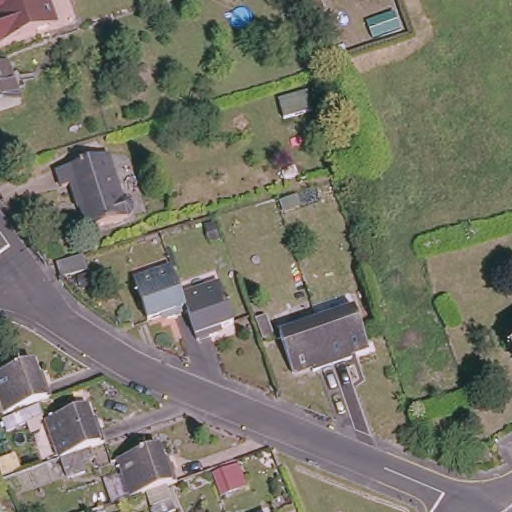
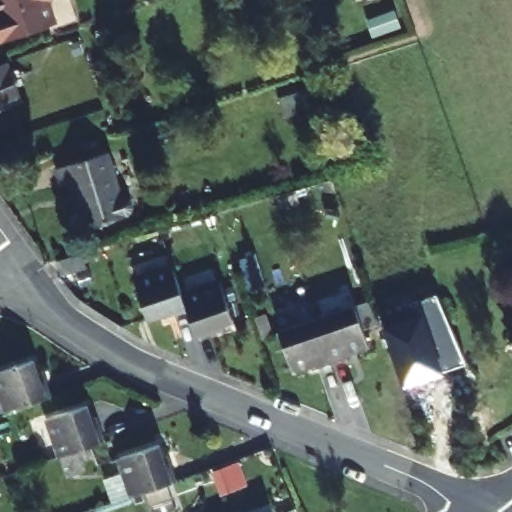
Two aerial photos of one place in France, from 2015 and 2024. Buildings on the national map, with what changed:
unchanged [(6,39),(0,24),(0,15),(2,14),(0,9),(0,0),(55,0),(62,18),(6,39)]
unchanged [(0,58),(13,96),(0,100),(0,58)]
unchanged [(312,94),(317,109),(288,118),(282,104),(312,94)]
unchanged [(90,229),(85,208),(80,209),(74,184),(65,186),(61,169),(110,154),(131,216),(90,229)]
unchanged [(74,258),(87,254),(92,268),(78,272),(66,275),(62,262),(74,258)]
unchanged [(167,309),(147,314),(135,275),(172,264),(180,292),(186,307),(168,313),(167,309)]
unchanged [(186,307),(180,292),(220,279),(232,317),(213,323),(215,329),(195,335),(186,307)]
new [(382,325),(426,311),(422,299),(437,293),(465,362),(442,369),(444,374),(404,387),(382,325)]
unchanged [(355,303),(367,340),(349,347),(350,352),(330,358),(317,316),(355,303)]
unchanged [(330,358),(311,364),(310,359),(291,366),(279,329),(317,316),(330,358)]
unchanged [(0,379),(0,365),(33,354),(40,372),(45,371),(52,389),(10,406),(0,379)]
unchanged [(62,450),(49,412),(87,399),(94,418),(99,417),(105,435),(62,450)]
unchanged [(160,442),(166,461),(172,459),(178,479),(147,490),(137,494),(122,454),(160,442)]

